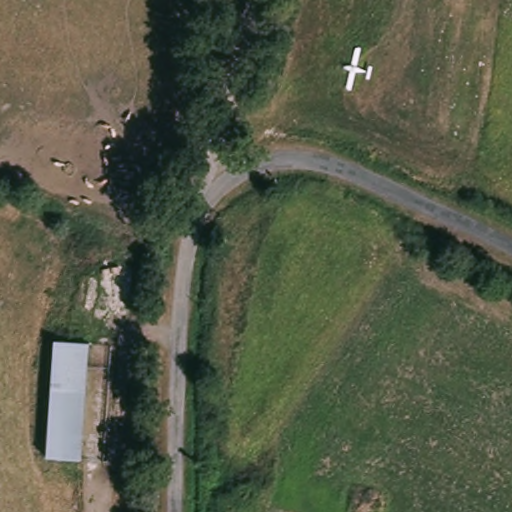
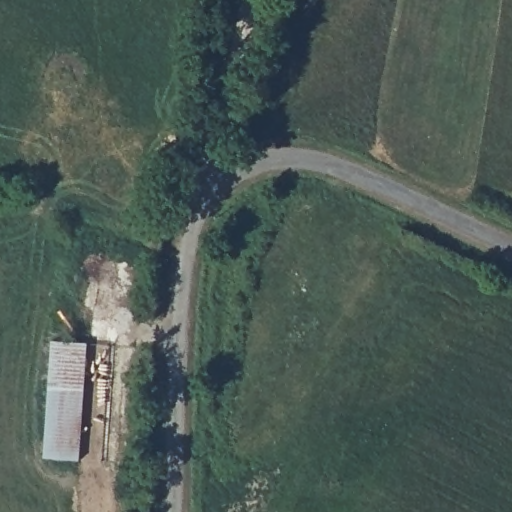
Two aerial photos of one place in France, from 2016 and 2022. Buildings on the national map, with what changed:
unchanged [(85,461),(52,458),(60,341),(93,344),(85,461)]

